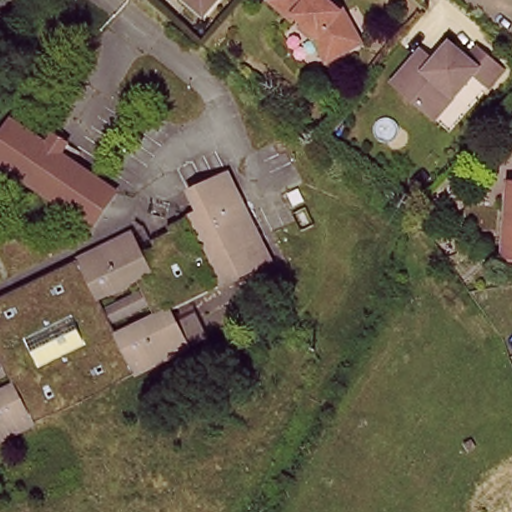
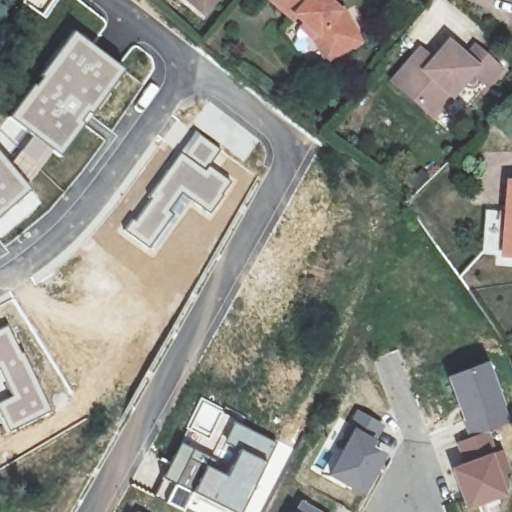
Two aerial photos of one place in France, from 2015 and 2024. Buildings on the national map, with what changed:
new [(55,0),(44,16),(22,1),(22,0),(55,0)]
unchanged [(215,0),(199,20),(174,0),(215,0)]
unchanged [(314,35),(297,20),(293,23),(290,26),(264,0),(319,0),(335,14),(341,10),(357,49),(328,61),(324,64),(314,35)]
new [(30,189),(0,215),(0,124),(5,117),(71,31),(122,70),(57,156),(50,152),(25,184),(30,189)]
unchanged [(421,107),(387,77),(411,49),(427,59),(445,37),(463,54),(473,42),(498,66),(484,81),(470,70),(453,90),(430,115),(421,107)]
demolished [(18,120),(52,148),(59,139),(71,147),(64,157),(117,201),(90,235),(0,161),(0,142),(18,120)]
new [(143,206),(195,127),(222,150),(211,165),(234,182),(225,196),(212,215),(190,202),(151,250),(123,230),(143,206)]
new [(222,150),(257,175),(242,200),(234,196),(233,196),(230,200),(225,196),(234,182),(211,165),(222,150)]
unchanged [(497,262),(507,175),(512,176),(512,263),(497,262)]
demolished [(126,235),(138,256),(147,253),(178,240),(172,227),(205,213),(196,192),(237,176),(267,252),(240,260),(249,283),(174,315),(181,332),(165,336),(174,358),(0,432),(0,287),(126,235)]
new [(30,189),(41,203),(0,238),(0,215),(30,189)]
new [(8,323),(53,410),(7,433),(0,421),(0,327),(8,323)]
new [(468,437),(444,377),(487,360),(512,422),(489,430),(495,451),(503,448),(511,472),(507,474),(512,494),(465,511),(450,467),(462,462),(455,442),(468,437)]
new [(352,426),(347,422),(355,408),(385,426),(374,446),(388,455),(364,497),(325,475),(352,426)]
new [(232,421),(279,441),(268,464),(222,442),(232,421)]
new [(180,442),(214,458),(222,442),(268,464),(244,512),(225,512),(192,495),(184,512),(164,502),(173,483),(163,478),(180,442)]
new [(300,499),(323,512),(293,512),(300,499)]
new [(136,511),(136,512),(135,512),(136,511)]

